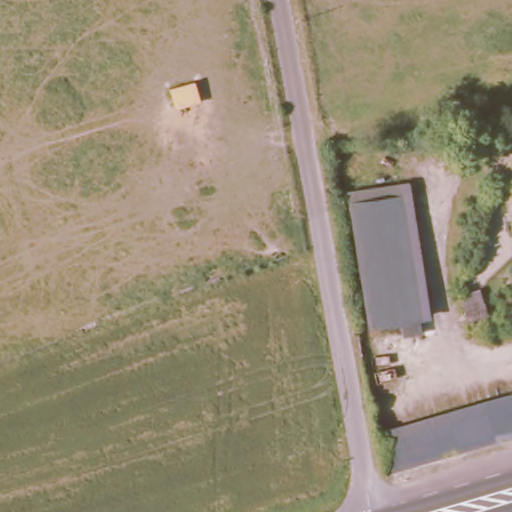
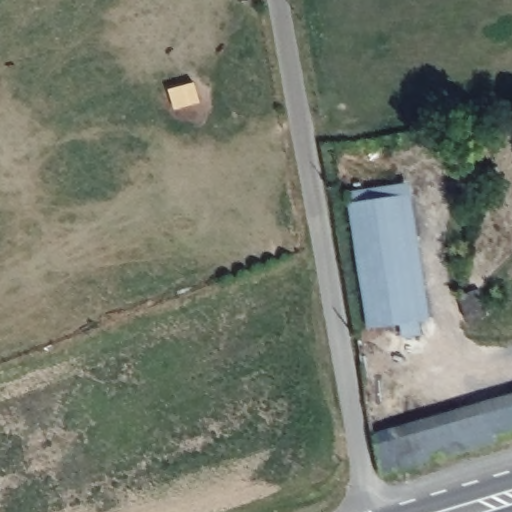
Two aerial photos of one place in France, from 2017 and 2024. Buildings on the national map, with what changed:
unchanged [(406,193),(426,318),(363,327),(344,202),(406,193)]
unchanged [(495,316),(476,321),(475,316),(470,296),(487,292),(491,311),(493,310),(495,316)]
unchanged [(486,408),(512,401),(512,431),(492,436),(486,408)]
unchanged [(373,435),(483,402),(486,408),(492,436),(379,469),(373,435)]

